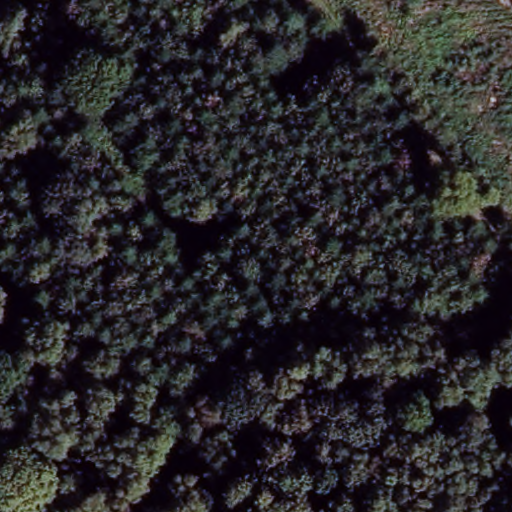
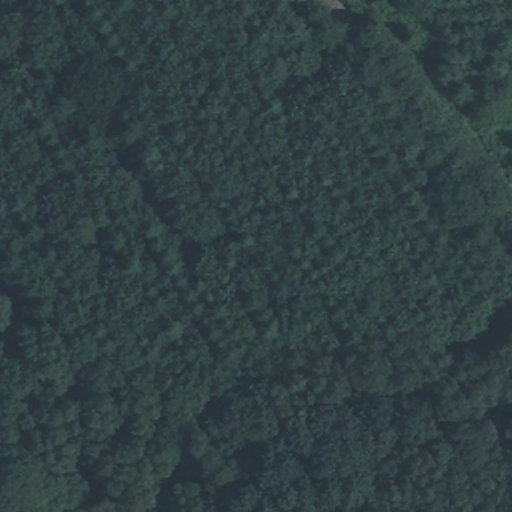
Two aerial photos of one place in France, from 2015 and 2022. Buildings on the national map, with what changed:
[]

